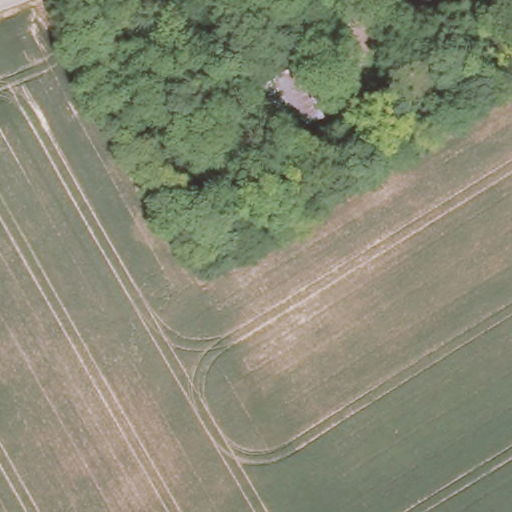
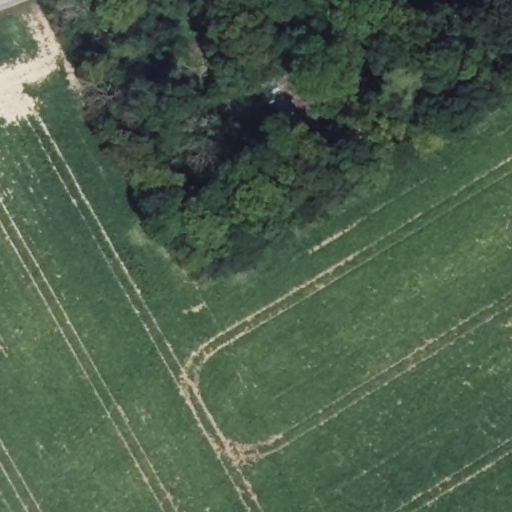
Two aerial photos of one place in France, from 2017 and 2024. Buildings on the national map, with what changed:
unchanged [(321,116),(294,132),(286,118),(294,111),(275,77),(293,66),(321,116)]

